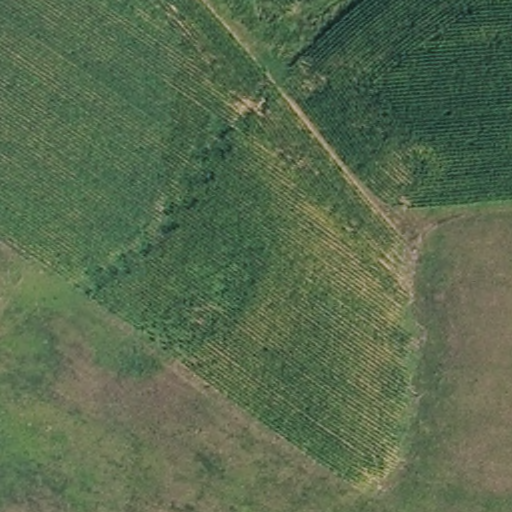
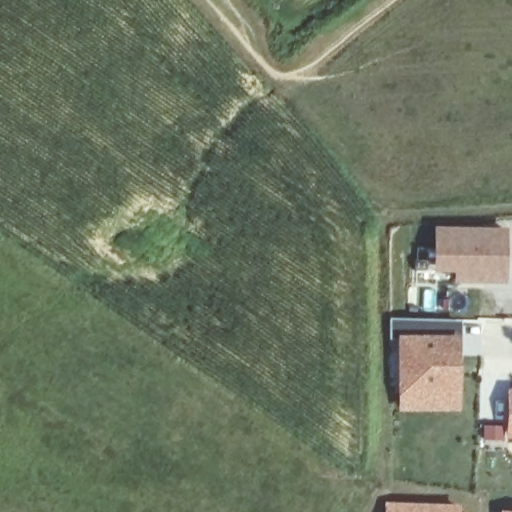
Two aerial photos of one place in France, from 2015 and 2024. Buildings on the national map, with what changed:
new [(454,271),(435,271),(435,225),(507,226),(508,283),(455,283),(454,271)]
new [(399,412),(399,396),(398,335),(392,337),(392,318),(463,320),(463,336),(460,335),(460,390),(460,410),(399,412)]
new [(512,388),(512,436),(506,436),(508,387),(512,388)]
new [(462,502),(462,512),(383,512),(384,499),(462,502)]
new [(501,512),(501,509),(512,510),(512,512),(501,512)]

